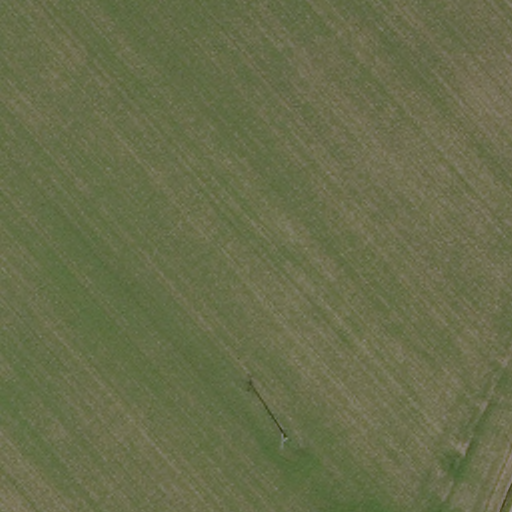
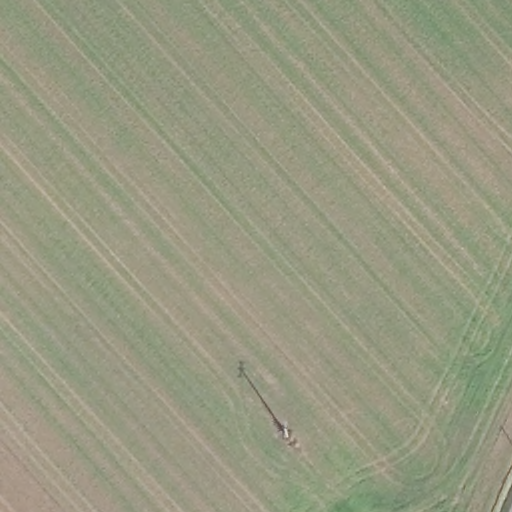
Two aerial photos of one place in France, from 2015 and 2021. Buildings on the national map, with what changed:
[]

